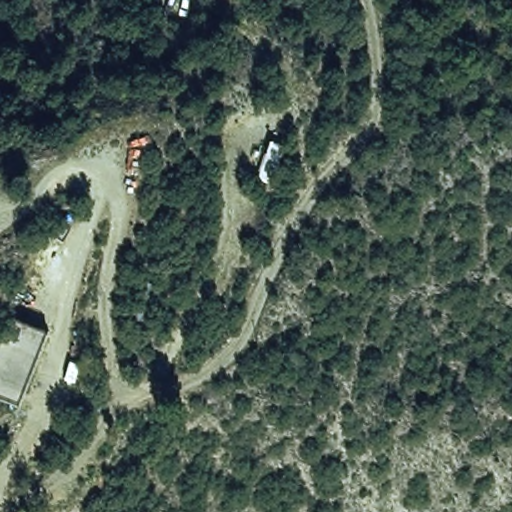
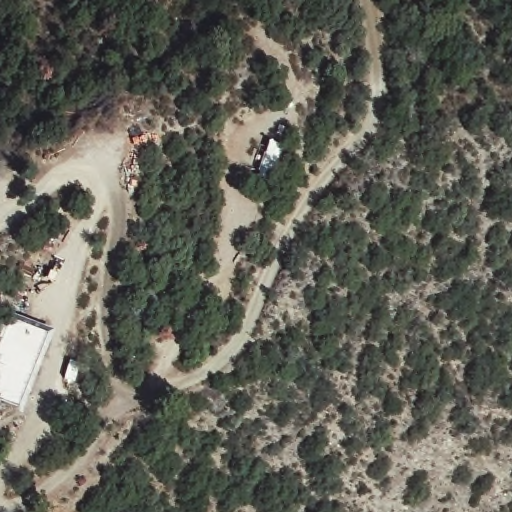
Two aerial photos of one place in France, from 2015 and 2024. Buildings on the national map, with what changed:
unchanged [(49,331),(21,408),(0,400),(0,341),(9,316),(49,331)]

